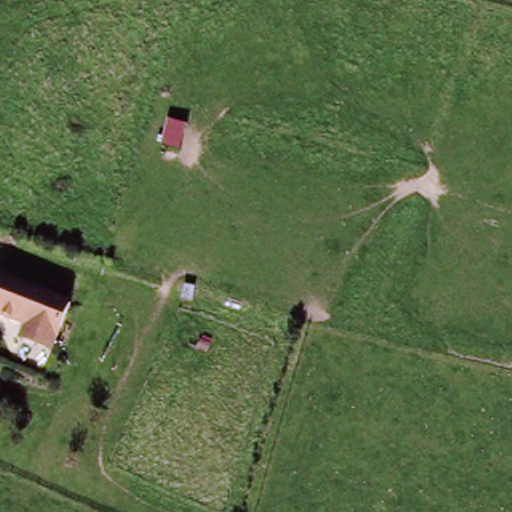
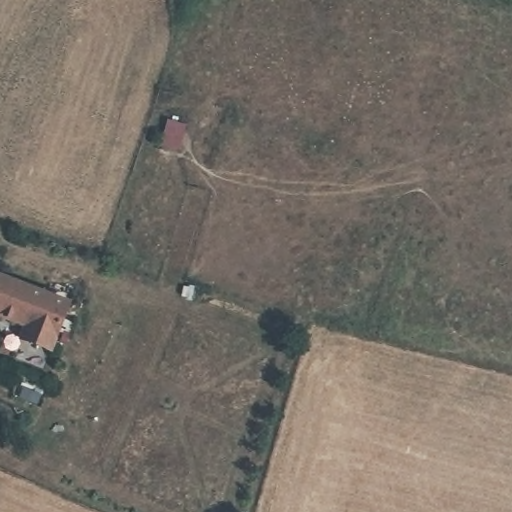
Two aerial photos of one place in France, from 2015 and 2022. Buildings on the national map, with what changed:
unchanged [(69,301),(52,355),(23,344),(26,332),(0,323),(0,278),(69,301)]

